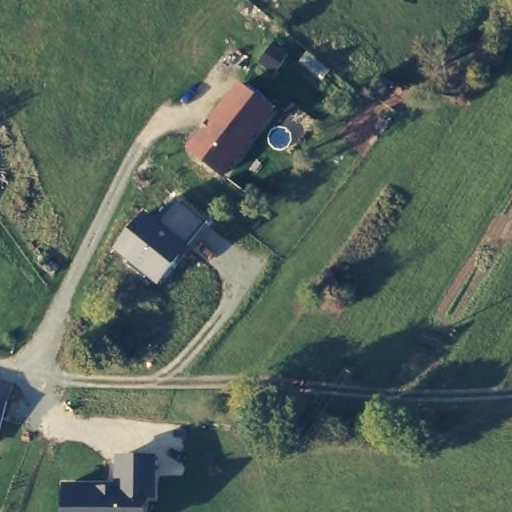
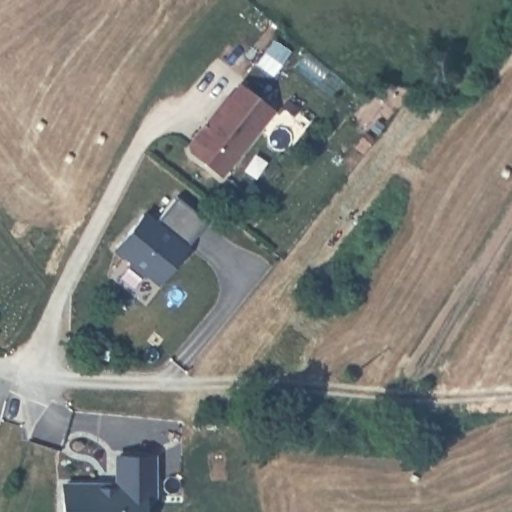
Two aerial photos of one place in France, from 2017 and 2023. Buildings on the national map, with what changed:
unchanged [(222,175),(185,149),(237,82),(273,110),(222,175)]
unchanged [(113,248),(145,210),(157,222),(178,200),(207,223),(185,247),(189,250),(159,286),(113,248)]
unchanged [(115,482),(115,456),(157,456),(157,499),(145,500),(145,512),(62,512),(61,484),(115,482)]

